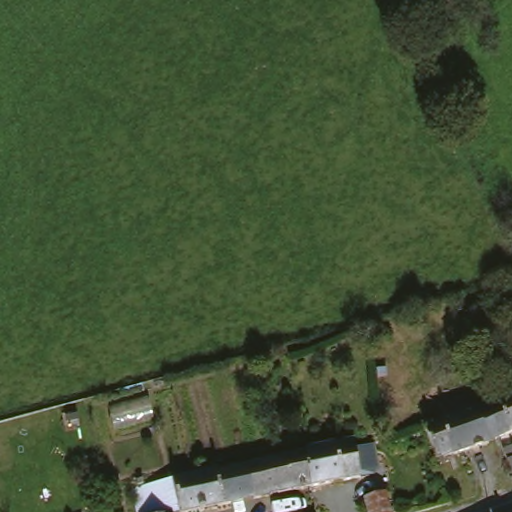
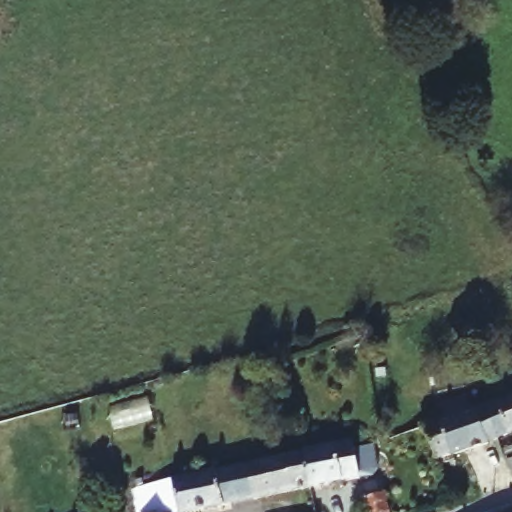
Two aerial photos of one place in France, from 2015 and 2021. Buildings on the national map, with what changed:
unchanged [(500,433),(491,401),(512,394),(512,430),(500,433)]
unchanged [(427,422),(447,416),(491,401),(500,433),(456,447),(436,453),(427,422)]
unchanged [(306,485),(304,486),(295,445),(350,434),(353,446),(373,441),(381,470),(306,485)]
unchanged [(178,511),(178,509),(168,471),(295,445),(304,486),(178,511)]
unchanged [(170,510),(164,512),(138,512),(131,483),(168,471),(178,509),(170,510)]
unchanged [(391,512),(386,512),(381,491),(400,485),(406,507),(391,512)]
unchanged [(170,512),(164,512),(170,510),(170,512)]

